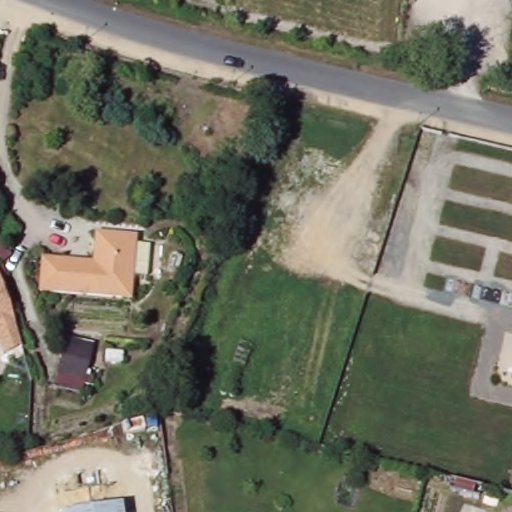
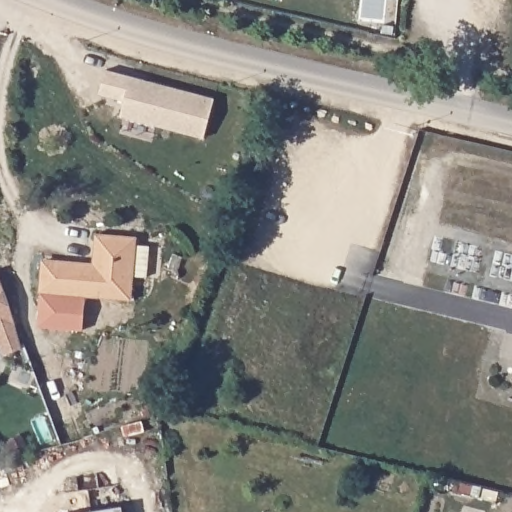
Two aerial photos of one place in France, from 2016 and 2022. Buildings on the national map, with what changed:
new [(123,101),(98,94),(105,69),(214,97),(204,139),(119,117),(123,101)]
unchanged [(36,295),(39,265),(90,269),(93,240),(129,243),(129,249),(144,250),(142,281),(126,280),(124,303),(36,295)]
unchanged [(4,357),(0,350),(0,275),(25,348),(4,357)]
new [(84,329),(38,326),(39,296),(85,299),(84,329)]
unchanged [(121,505),(122,512),(76,512),(121,505)]

